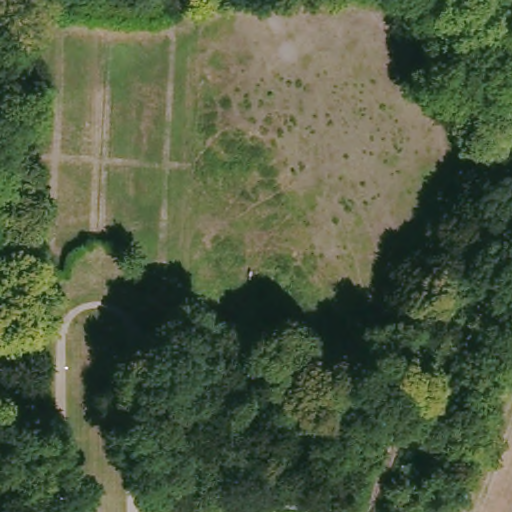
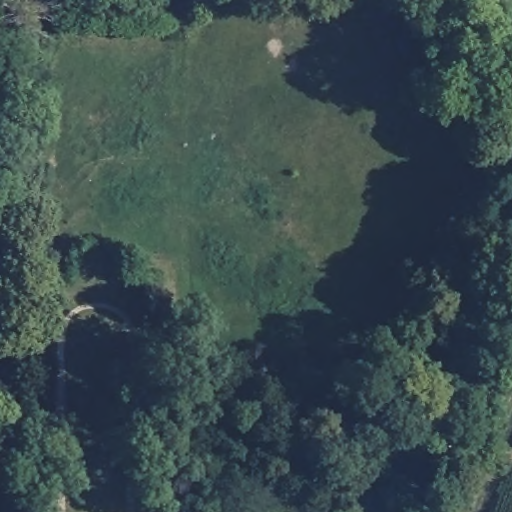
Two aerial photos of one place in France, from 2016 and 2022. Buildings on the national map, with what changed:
unchanged [(324,490),(322,510),(284,508),(285,486),(324,490)]

